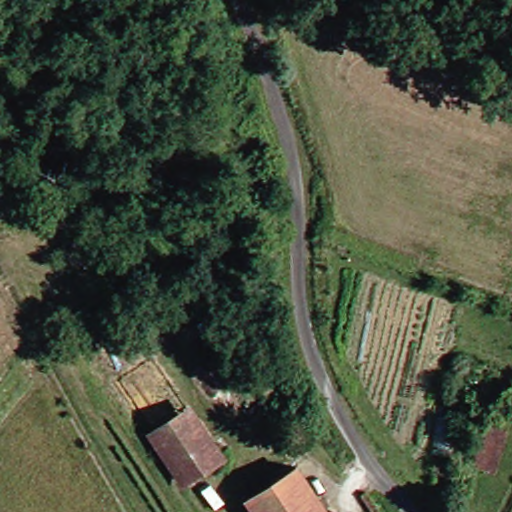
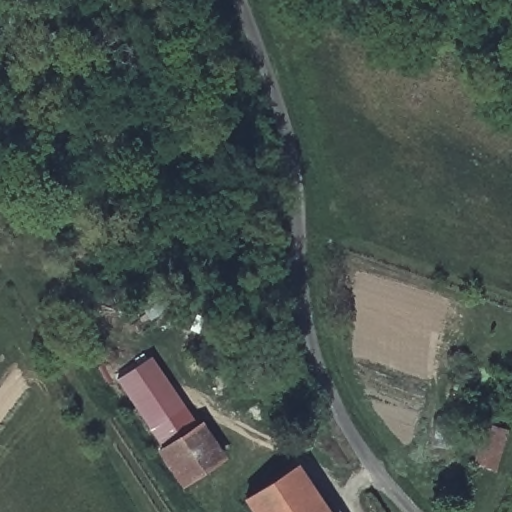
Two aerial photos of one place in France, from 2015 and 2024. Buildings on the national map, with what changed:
new [(187,409),(152,432),(118,380),(153,358),(187,409)]
unchanged [(195,405),(228,454),(186,483),(151,433),(195,405)]
unchanged [(485,413),(508,419),(491,474),(472,466),(485,413)]
unchanged [(306,463),(334,512),(260,512),(253,499),(306,463)]

